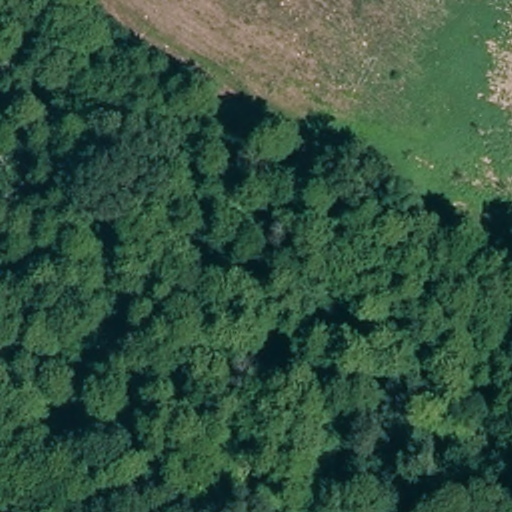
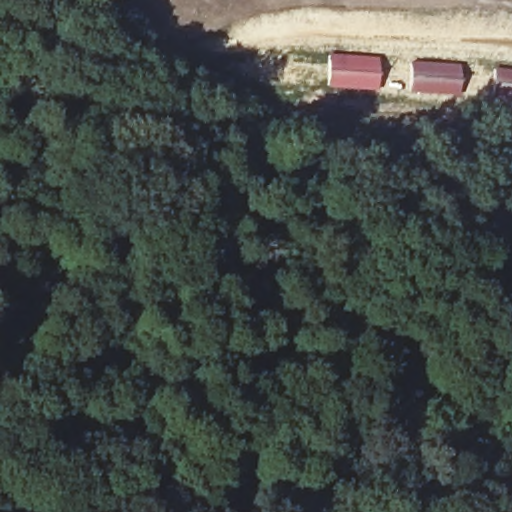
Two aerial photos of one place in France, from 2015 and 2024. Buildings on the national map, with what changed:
new [(328,54),(380,57),(377,91),(325,87),(328,54)]
new [(410,61),(460,64),(459,96),(409,93),(410,61)]

